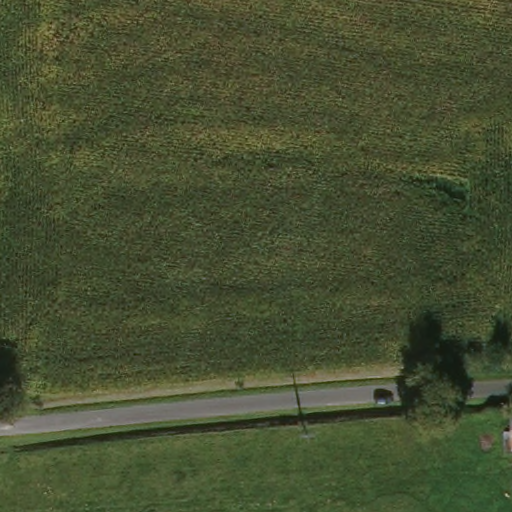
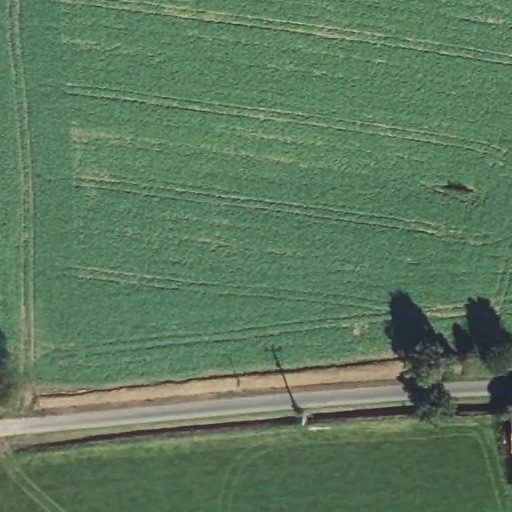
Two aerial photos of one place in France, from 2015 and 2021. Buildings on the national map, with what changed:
unchanged [(499,459),(497,424),(512,423),(512,458),(499,459)]

